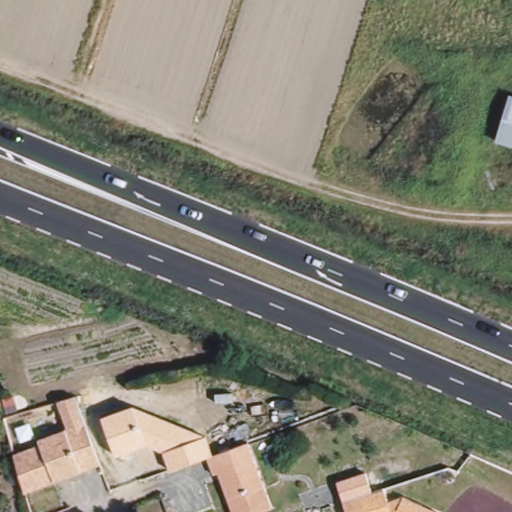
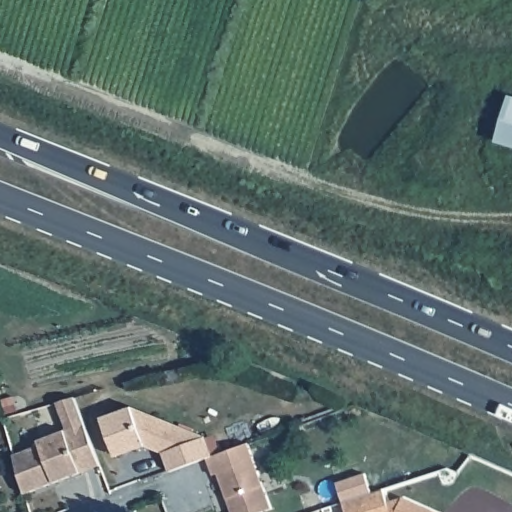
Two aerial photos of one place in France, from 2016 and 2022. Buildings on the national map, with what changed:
unchanged [(494,147),(509,99),(512,99),(512,152),(494,147)]
unchanged [(14,456),(42,445),(40,438),(69,427),(59,401),(76,395),(100,464),(26,492),(14,456)]
unchanged [(133,406),(207,437),(213,456),(203,459),(170,470),(165,452),(145,445),(114,457),(101,417),(133,406)]
unchanged [(244,445),(268,511),(263,512),(227,512),(214,475),(209,476),(203,459),(244,445)]
unchanged [(378,487),(382,502),(398,497),(430,512),(341,512),(337,501),(378,487)]

